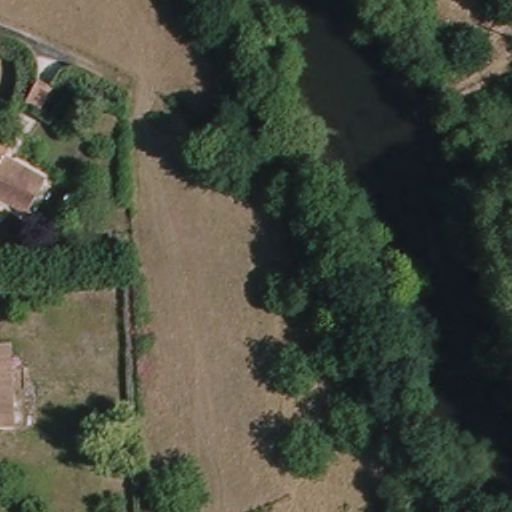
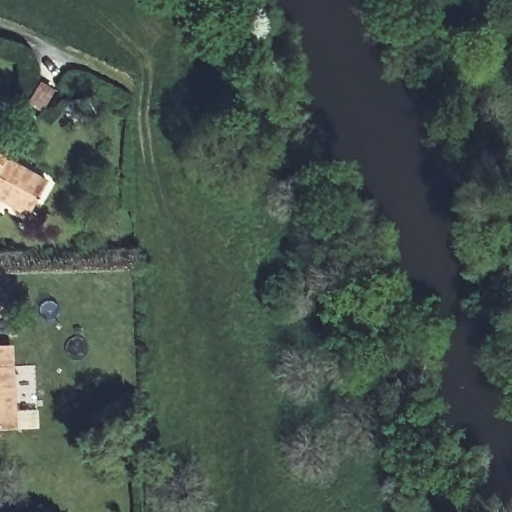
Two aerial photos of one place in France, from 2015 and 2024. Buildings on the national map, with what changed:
unchanged [(0,206),(0,151),(7,155),(3,164),(47,188),(28,221),(0,206)]
unchanged [(12,431),(0,432),(0,349),(8,348),(12,431)]

